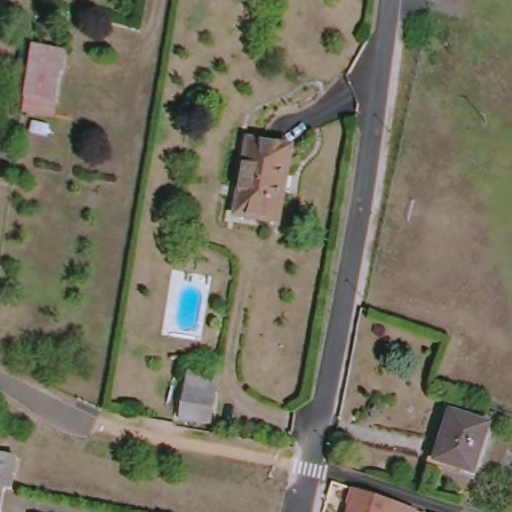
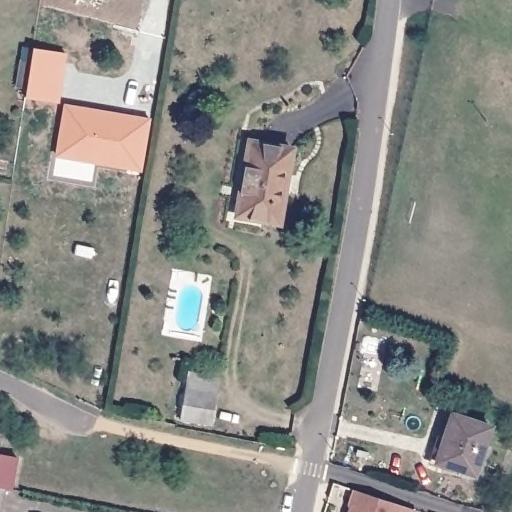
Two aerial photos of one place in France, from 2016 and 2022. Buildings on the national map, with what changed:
unchanged [(25,46),(58,51),(55,69),(52,68),(45,115),(15,110),(25,46)]
new [(144,174),(54,158),(65,103),(152,118),(144,174)]
unchanged [(232,216),(245,142),(287,151),(272,223),(232,216)]
unchanged [(175,409),(180,378),(211,384),(205,414),(175,409)]
unchanged [(429,457),(447,410),(485,424),(467,472),(429,457)]
unchanged [(0,455),(13,457),(7,490),(0,489),(0,455)]
unchanged [(336,492),(340,479),(385,494),(402,500),(398,512),(334,512),(340,494),(336,492)]

